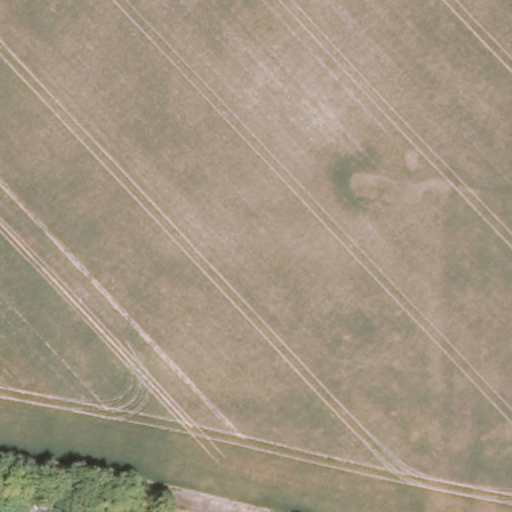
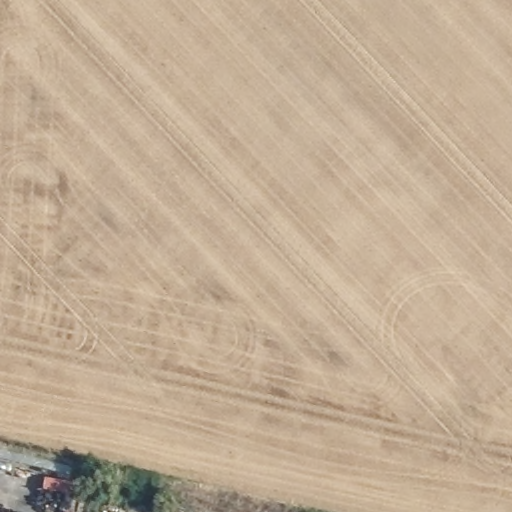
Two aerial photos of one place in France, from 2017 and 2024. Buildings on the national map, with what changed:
unchanged [(73,492),(143,512),(68,512),(73,492)]

